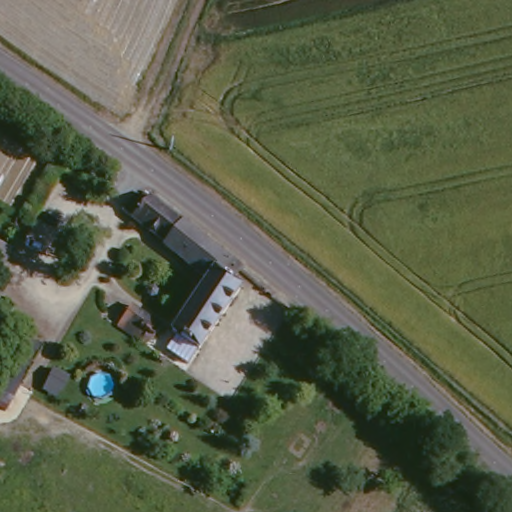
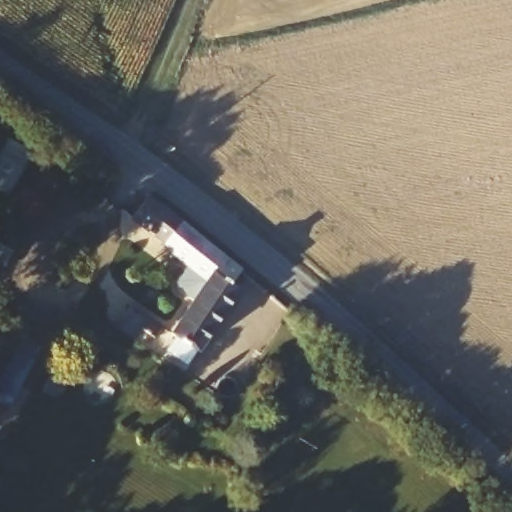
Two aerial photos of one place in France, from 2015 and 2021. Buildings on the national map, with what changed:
unchanged [(165,327),(204,276),(132,221),(146,200),(242,273),(231,288),(238,292),(194,350),(165,327)]
unchanged [(121,320),(137,300),(163,318),(146,340),(121,320)]
unchanged [(30,330),(40,336),(9,388),(1,400),(0,399),(0,358),(21,325),(30,330)]

